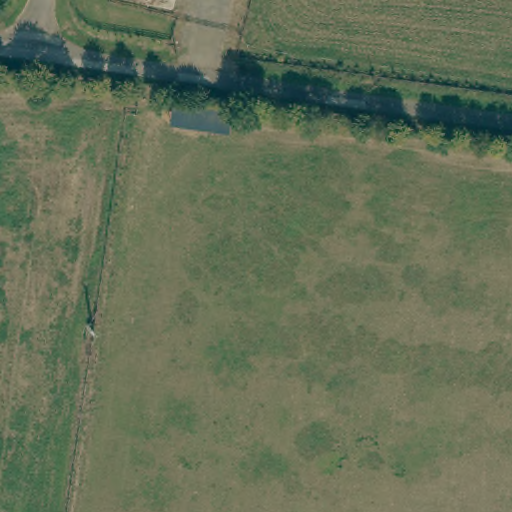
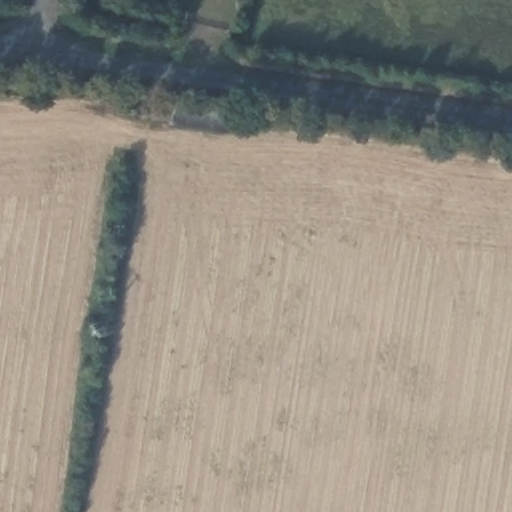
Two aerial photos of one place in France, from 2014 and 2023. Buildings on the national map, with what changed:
unchanged [(228,126),(168,117),(171,97),(230,106),(228,126)]

